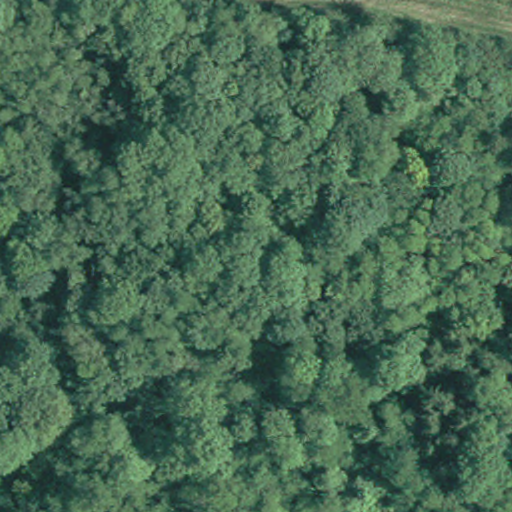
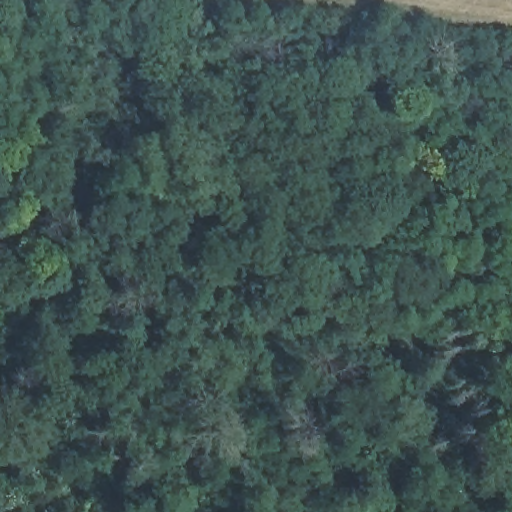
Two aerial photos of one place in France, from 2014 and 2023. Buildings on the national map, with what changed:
[]

